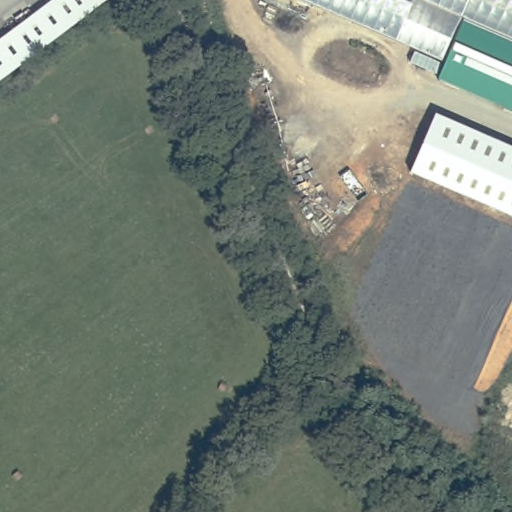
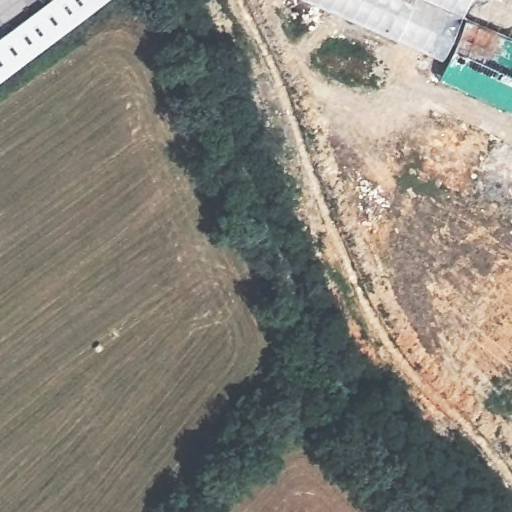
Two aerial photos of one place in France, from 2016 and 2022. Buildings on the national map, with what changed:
unchanged [(48,0),(97,0),(71,19),(0,73),(0,35),(48,0)]
unchanged [(446,61),(307,0),(512,0),(512,43),(463,21),(446,61)]
unchanged [(463,21),(512,43),(512,111),(438,80),(446,61),(463,21)]
demolished [(512,217),(410,173),(436,114),(512,146),(512,217)]

